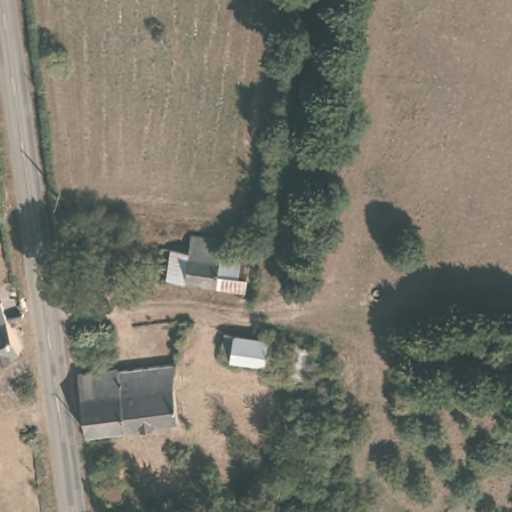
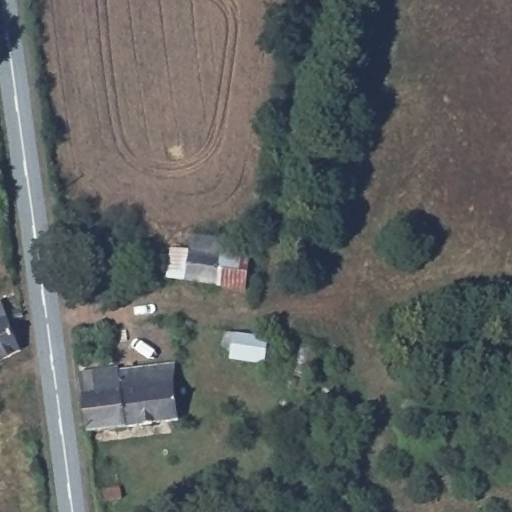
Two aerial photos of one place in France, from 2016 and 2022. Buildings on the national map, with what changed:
unchanged [(168,287),(170,252),(189,255),(191,240),(222,244),(220,258),(246,261),(241,296),(216,293),(185,288),(168,287)]
unchanged [(161,290),(170,291),(170,301),(160,300),(161,290)]
unchanged [(0,306),(3,305),(24,352),(0,364),(0,306)]
unchanged [(235,332),(263,338),(258,372),(228,367),(230,357),(222,356),(222,331),(235,332)]
unchanged [(91,442),(82,379),(120,373),(120,377),(164,371),(176,430),(172,430),(91,442)]
unchanged [(93,481),(114,479),(116,495),(95,497),(93,481)]

